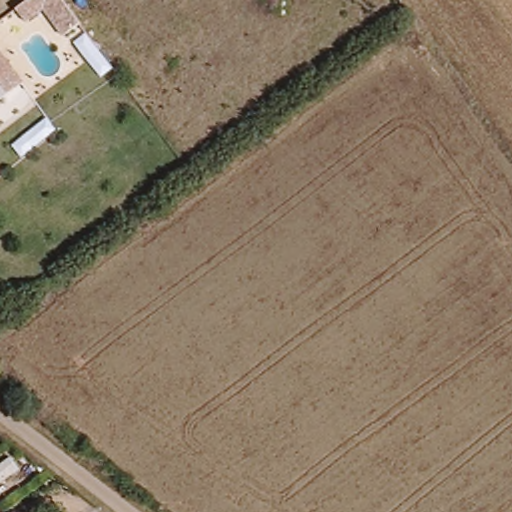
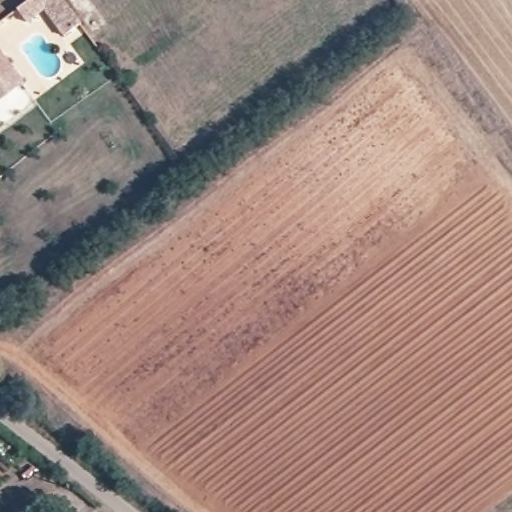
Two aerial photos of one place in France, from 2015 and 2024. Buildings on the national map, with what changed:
unchanged [(26,25),(14,8),(25,0),(63,0),(80,24),(62,35),(43,11),(26,25)]
unchanged [(24,80),(6,91),(0,84),(0,49),(24,80)]
unchanged [(6,91),(0,95),(0,84),(6,91)]

